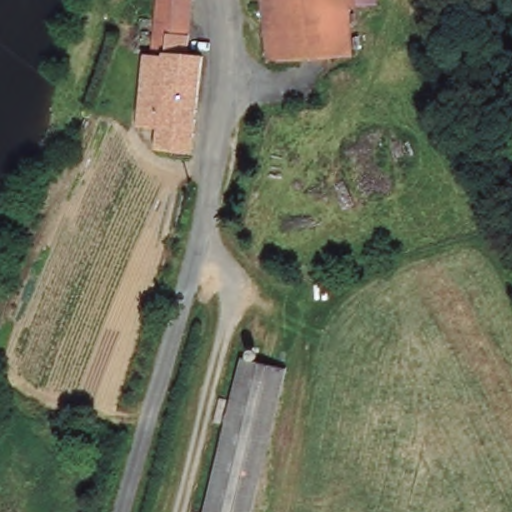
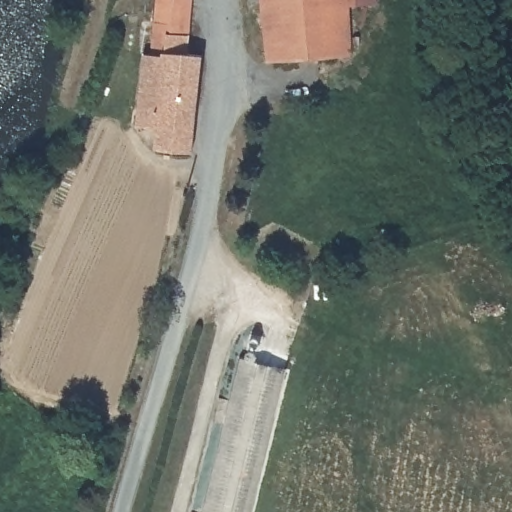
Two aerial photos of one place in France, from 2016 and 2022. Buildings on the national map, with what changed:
unchanged [(155,148),(157,128),(136,125),(144,53),(151,54),(156,0),(192,0),(187,54),(202,55),(192,151),(155,148)]
unchanged [(268,60),(261,61),(257,0),(352,0),(357,51),(268,60)]
unchanged [(207,489),(239,353),(282,364),(248,512),(202,512),(207,489)]

